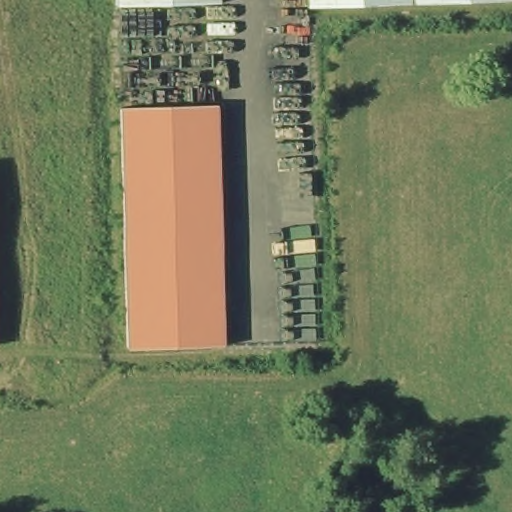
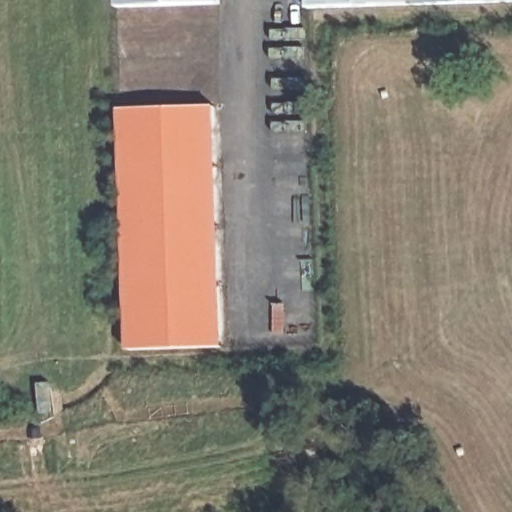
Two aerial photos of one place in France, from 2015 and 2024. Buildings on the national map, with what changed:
unchanged [(216,3),(113,6),(113,0),(216,0),(216,3)]
unchanged [(316,2),(315,0),(380,0),(316,2)]
unchanged [(223,101),(228,341),(125,344),(120,103),(223,101)]

